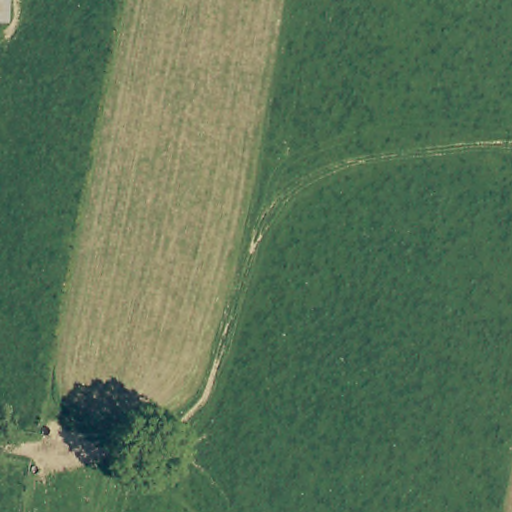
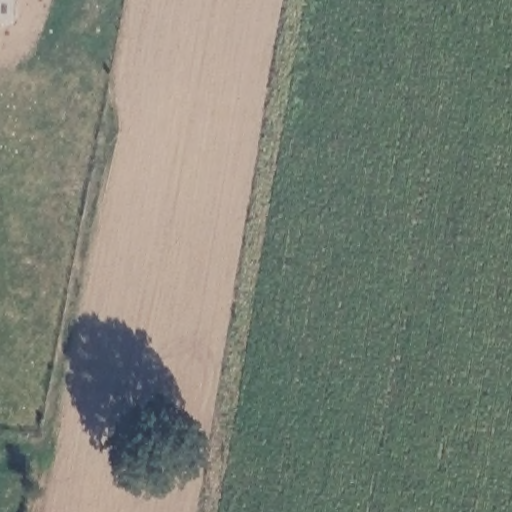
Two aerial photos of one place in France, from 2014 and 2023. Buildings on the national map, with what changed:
unchanged [(5,0),(4,18),(0,18),(0,0),(5,0)]

